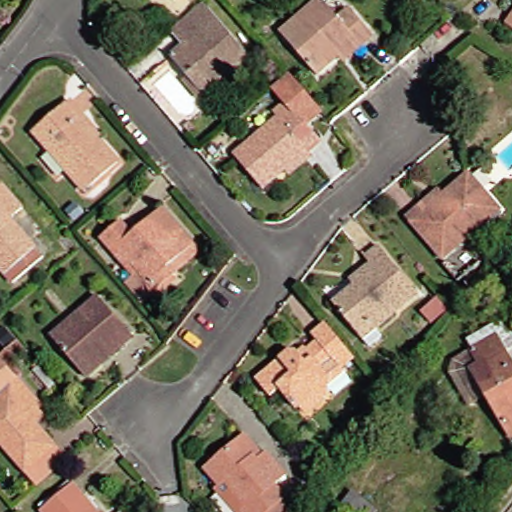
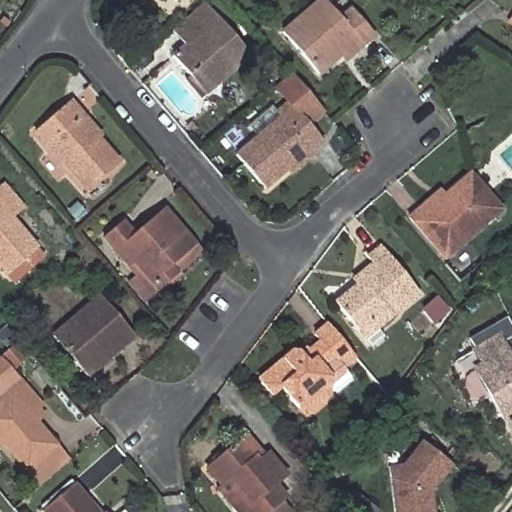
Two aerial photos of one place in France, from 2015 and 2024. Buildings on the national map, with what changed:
unchanged [(321,77),(284,35),(323,1),(341,22),(353,12),(376,39),(364,49),(348,62),(343,57),(321,77)]
unchanged [(178,56),(194,43),(180,27),(209,2),(255,56),(216,89),(210,94),(196,77),(178,56)]
unchanged [(275,80),(262,91),(252,80),(265,69),(275,80)]
unchanged [(284,185),(280,179),(256,199),(227,165),(271,127),(267,124),(279,113),(265,97),(281,82),(314,120),(298,133),(313,150),(301,160),(306,166),(284,185)]
unchanged [(84,190),(35,133),(72,102),(82,114),(100,135),(97,137),(118,161),(84,190)]
unchanged [(503,209),(447,258),(410,217),(422,206),(440,190),(445,195),(471,172),(503,209)]
unchanged [(7,182),(30,208),(16,219),(50,257),(20,282),(0,260),(0,189),(7,182)]
unchanged [(107,237),(127,220),(139,233),(169,207),(201,244),(207,251),(181,273),(162,290),(157,293),(133,266),(107,237)]
unchanged [(333,302),(355,285),(351,279),(357,274),(370,263),(365,258),(379,247),(418,293),(377,327),(364,338),(357,331),(333,302)]
unchanged [(54,335),(100,296),(135,337),(89,377),(54,335)]
unchanged [(475,349),(469,338),(507,316),(512,325),(512,348),(508,351),(512,358),(512,435),(489,394),(471,404),(453,372),(457,360),(475,349)]
unchanged [(282,389),(275,397),(260,378),(292,352),(299,352),(306,347),(309,350),(320,341),(314,334),(327,322),(355,356),(342,367),(334,357),(323,367),(330,376),(330,395),(328,396),(305,416),(300,409),(282,389)]
unchanged [(44,487),(31,472),(0,435),(0,414),(4,411),(0,406),(0,361),(5,357),(49,410),(36,420),(60,448),(72,462),(44,487)]
unchanged [(288,471),(277,480),(290,495),(271,512),(246,512),(253,505),(232,481),(224,487),(208,470),(242,440),(247,436),(263,453),(268,448),(288,471)]
new [(433,492),(435,512),(394,512),(388,467),(402,465),(421,442),(453,466),(433,492)]
unchanged [(42,512),(74,485),(97,512),(42,512)]

